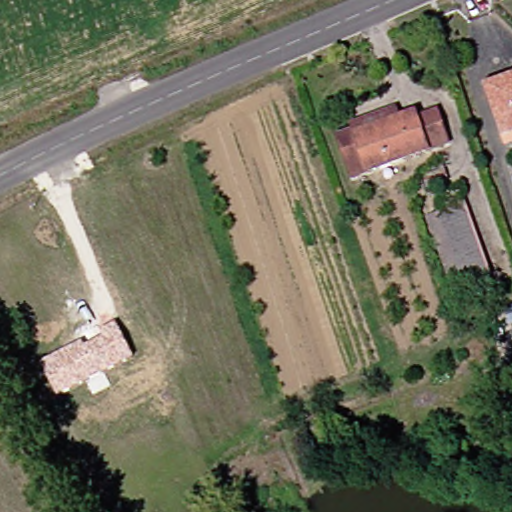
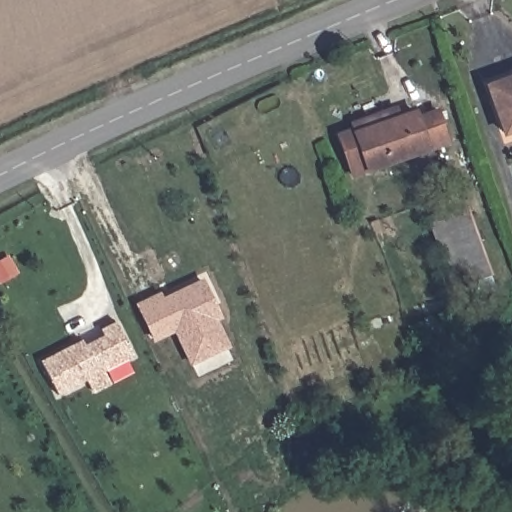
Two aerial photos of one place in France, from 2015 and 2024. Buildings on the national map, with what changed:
unchanged [(476,94),(502,86),(500,76),(512,73),(512,132),(491,139),(476,94)]
unchanged [(412,122),(427,116),(436,142),(343,173),(331,137),(348,131),(345,122),(390,108),(395,118),(408,113),(412,122)]
unchanged [(447,206),(471,273),(447,281),(426,212),(447,206)]
new [(220,317),(215,319),(228,346),(193,363),(174,324),(153,333),(139,305),(161,295),(164,300),(203,281),(220,317)]
unchanged [(469,320),(484,316),(488,327),(473,332),(469,320)]
unchanged [(105,371),(111,383),(91,392),(85,381),(57,395),(40,361),(83,339),(85,344),(102,334),(100,329),(117,322),(133,356),(105,371)]

